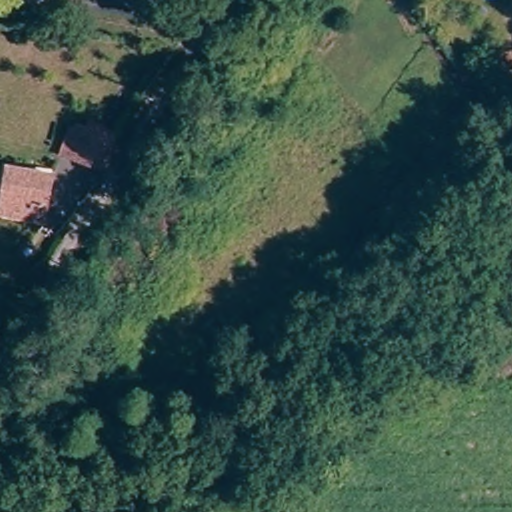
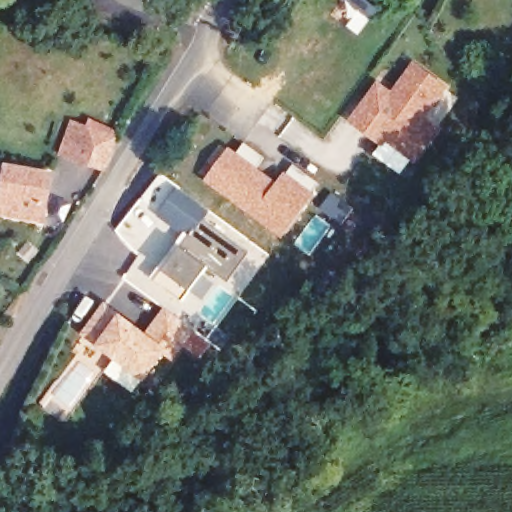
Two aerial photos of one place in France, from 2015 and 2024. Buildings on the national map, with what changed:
new [(393,91),(414,61),(451,87),(428,117),(444,129),(416,164),(388,143),(384,147),(349,122),(378,81),(393,91)]
unchanged [(105,171),(60,155),(70,126),(78,130),(79,126),(88,129),(89,126),(116,139),(105,171)]
new [(238,152),(245,143),(267,159),(258,167),(278,182),(293,164),(320,183),(314,191),(315,194),(283,236),(204,181),(232,147),(238,152)]
unchanged [(0,214),(0,195),(4,168),(50,176),(43,222),(0,214)]
new [(211,212),(204,221),(250,253),(229,281),(210,267),(204,275),(214,283),(200,297),(192,290),(183,302),(150,278),(183,235),(158,216),(179,190),(211,212)]
new [(121,313),(148,333),(165,307),(195,330),(174,360),(165,355),(146,380),(99,343),(83,335),(106,301),(121,313)]

